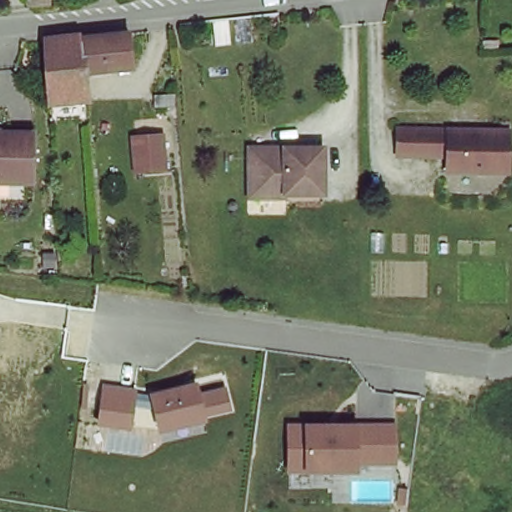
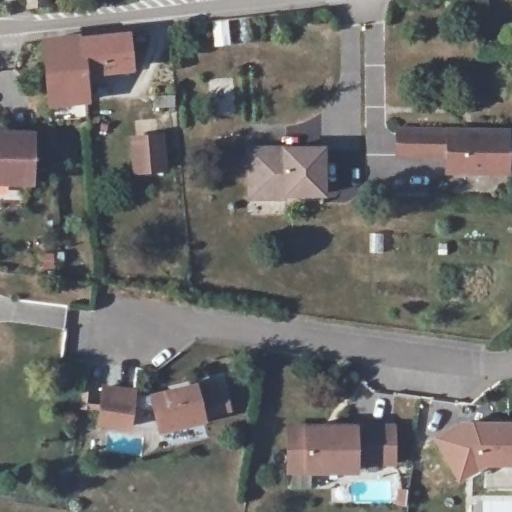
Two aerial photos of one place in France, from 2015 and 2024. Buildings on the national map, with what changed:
unchanged [(51,6),(22,5),(22,0),(51,0),(51,6)]
unchanged [(127,35),(129,67),(83,70),(81,40),(127,35)]
unchanged [(83,70),(85,101),(50,105),(50,89),(49,40),(81,36),(81,40),(83,70)]
unchanged [(507,125),(506,165),(445,164),(446,149),(416,149),(396,149),(397,124),(416,124),(446,124),(507,125)]
unchanged [(0,180),(0,130),(29,129),(29,179),(0,180)]
unchanged [(150,131),(152,163),(125,165),(123,133),(150,131)]
unchanged [(248,191),(248,184),(248,143),(321,142),(321,187),(282,187),(282,191),(248,191)]
unchanged [(103,384),(149,390),(198,381),(201,392),(225,385),(232,413),(205,423),(157,433),(153,414),(134,412),(131,432),(97,427),(103,384)]
new [(456,482),(430,435),(458,420),(512,420),(512,466),(485,465),(456,482)]
unchanged [(398,425),(398,471),(287,474),(287,425),(398,425)]

